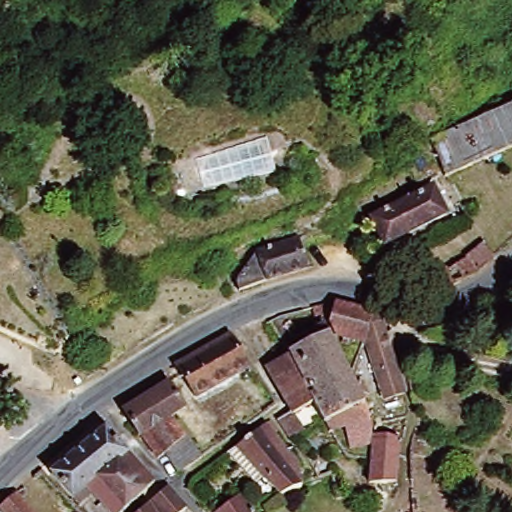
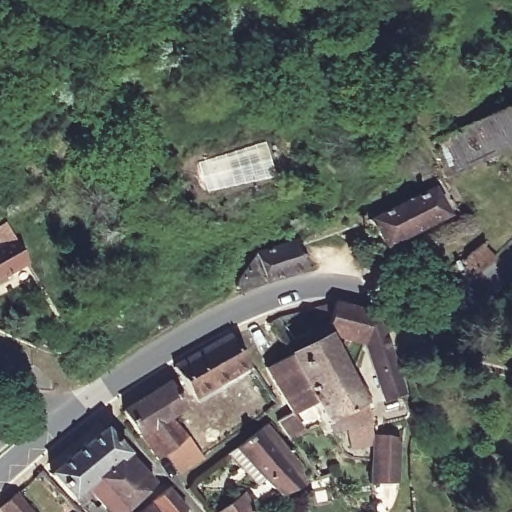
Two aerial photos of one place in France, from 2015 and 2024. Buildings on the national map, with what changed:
unchanged [(512,113),(512,154),(446,180),(433,145),(483,125),(512,113)]
unchanged [(368,220),(394,207),(431,189),(441,209),(445,216),(382,248),(368,220)]
new [(27,267),(0,282),(0,227),(4,225),(27,267)]
unchanged [(495,257),(456,288),(444,272),(484,242),(495,257)]
unchanged [(297,245),(306,274),(275,283),(237,296),(236,286),(255,260),(297,245)]
unchanged [(364,342),(362,342),(333,335),(327,324),(329,316),(314,320),(312,308),(332,302),(369,311),(364,342)]
unchanged [(380,320),(386,334),(404,395),(384,401),(364,342),(369,311),(380,320)]
unchanged [(307,333),(322,325),(327,335),(349,377),(309,397),(287,355),(311,343),(307,333)]
unchanged [(249,365),(192,399),(172,368),(229,335),(249,365)]
unchanged [(312,403),(290,415),(289,413),(264,367),(287,355),(309,397),(312,403)]
unchanged [(309,397),(349,377),(363,404),(370,433),(346,438),(344,428),(330,434),(328,435),(312,403),(309,397)]
unchanged [(156,460),(139,437),(138,437),(122,411),(167,383),(182,409),(168,418),(185,440),(187,439),(200,459),(177,474),(164,455),(156,460)]
unchanged [(225,455),(234,448),(264,425),(269,421),(270,422),(277,431),(272,435),(295,463),(300,486),(277,496),(262,480),(254,487),(225,455)]
unchanged [(54,475),(108,430),(157,485),(128,512),(111,512),(91,488),(76,501),(54,475)]
unchanged [(370,460),(372,437),(399,438),(399,441),(397,485),(369,485),(370,460)]
unchanged [(171,488),(189,510),(187,512),(143,512),(151,505),(154,503),(171,488)]
unchanged [(20,493),(36,512),(4,512),(1,509),(20,493)]
unchanged [(249,512),(223,512),(242,498),(249,512)]

